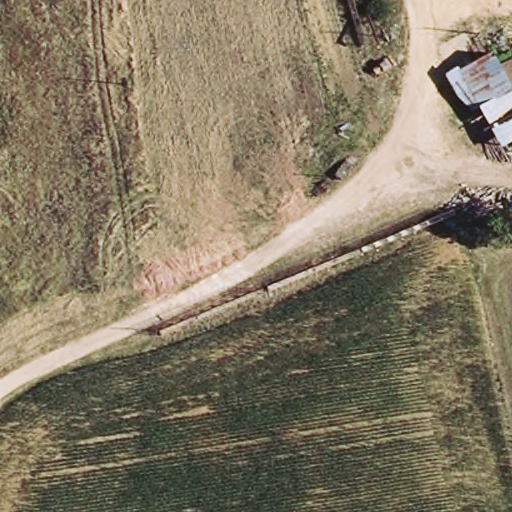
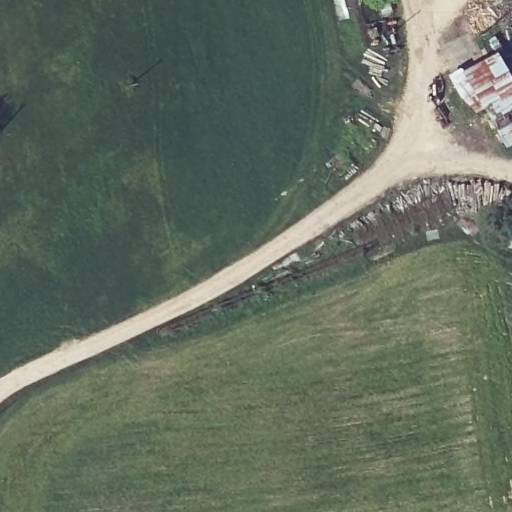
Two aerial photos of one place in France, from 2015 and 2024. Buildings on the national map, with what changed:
unchanged [(502,147),(482,107),(472,112),(457,94),(450,73),(461,67),(463,71),(497,52),(505,66),(512,61),(512,143),(502,147)]

